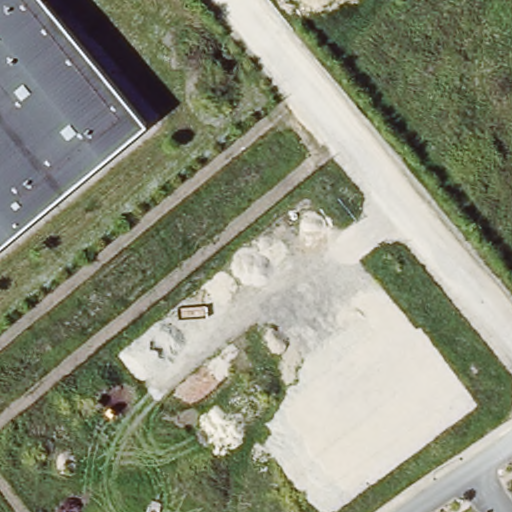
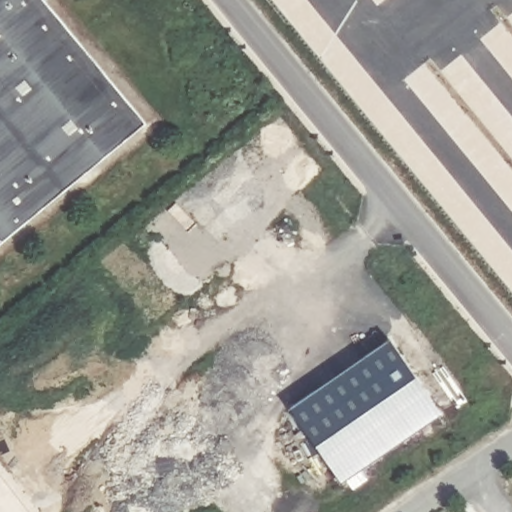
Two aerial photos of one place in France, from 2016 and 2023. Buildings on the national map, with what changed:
unchanged [(146,120),(0,241),(0,0),(48,0),(146,120)]
new [(388,341),(440,413),(360,469),(366,478),(352,488),(345,479),(340,483),(290,410),(388,341)]

